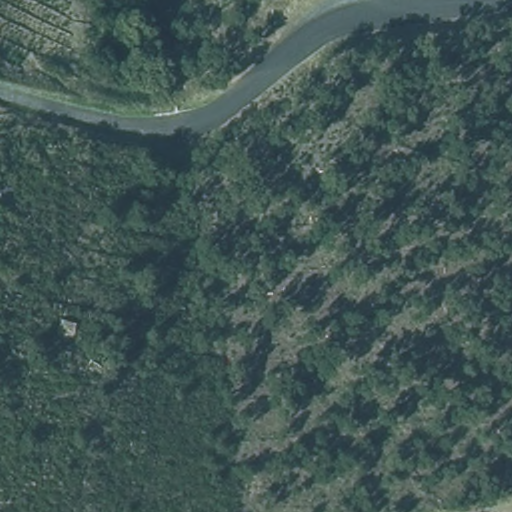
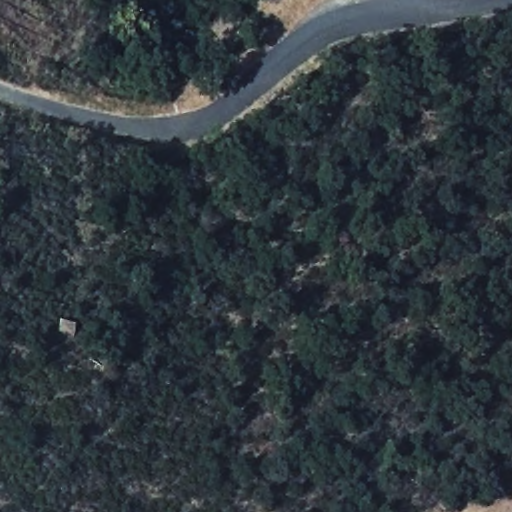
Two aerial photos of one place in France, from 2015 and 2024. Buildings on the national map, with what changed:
unchanged [(65,318),(82,323),(79,345),(62,339),(65,318)]

